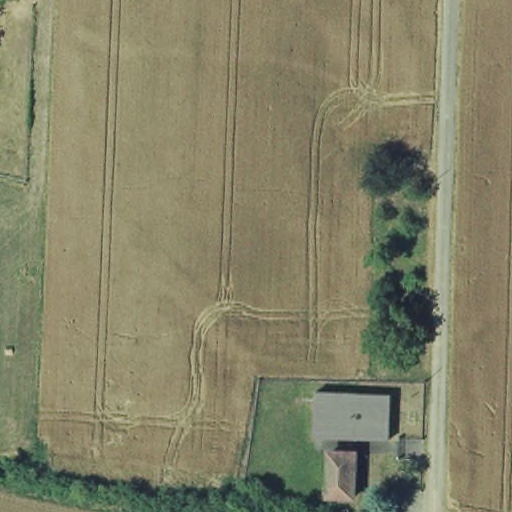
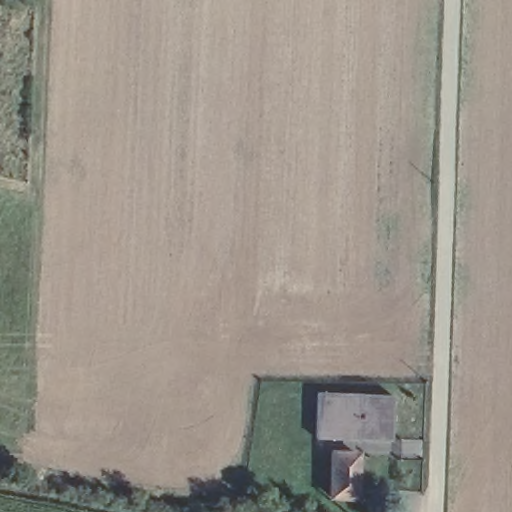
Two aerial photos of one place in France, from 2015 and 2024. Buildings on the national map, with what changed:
unchanged [(352,500),(330,500),(331,454),(353,455),(352,500)]

